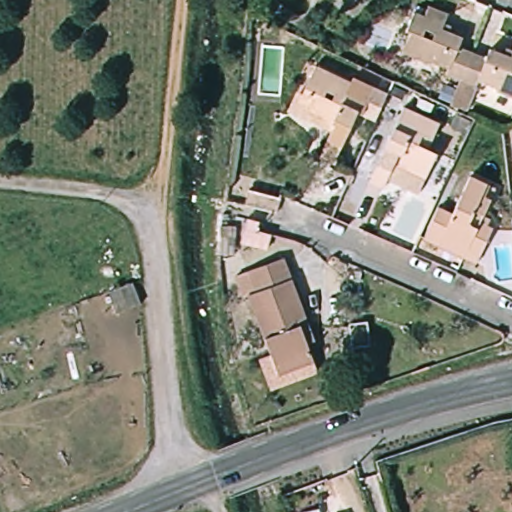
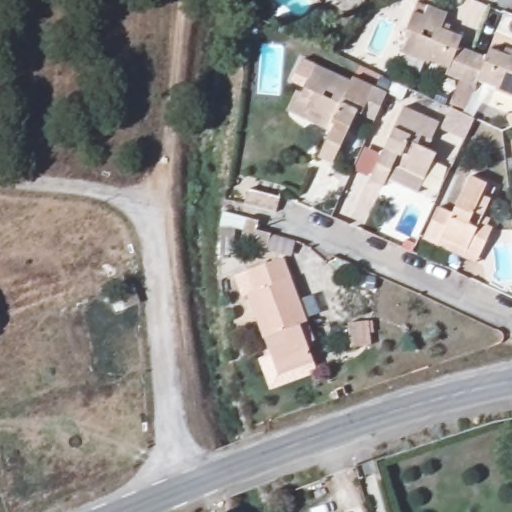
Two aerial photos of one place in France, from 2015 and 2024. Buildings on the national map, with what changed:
unchanged [(457,79),(443,72),(444,66),(400,48),(408,30),(402,26),(410,8),(422,12),(427,1),(446,9),(440,25),(459,36),(455,46),(468,52),(457,79)]
unchanged [(468,52),(482,58),(487,48),(507,57),(512,46),(512,97),(475,81),(472,85),(457,79),(468,52)]
unchanged [(350,87),(345,100),(360,109),(332,166),(318,159),(331,131),(304,117),(311,105),(299,99),(313,70),(350,87)]
unchanged [(432,123),(427,136),(417,133),(413,142),(430,151),(417,178),(397,168),(401,158),(392,153),(377,185),(362,178),(395,106),(432,123)]
unchanged [(427,202),(445,210),(463,171),(482,180),(477,192),(485,196),(475,219),(485,224),(472,250),(435,232),(432,238),(414,229),(427,202)]
unchanged [(248,198),(280,207),(275,225),(244,217),(244,216),(248,198)]
unchanged [(301,349),(308,369),(272,381),(243,299),(251,295),(244,275),(281,263),(306,335),(310,346),(301,349)]

